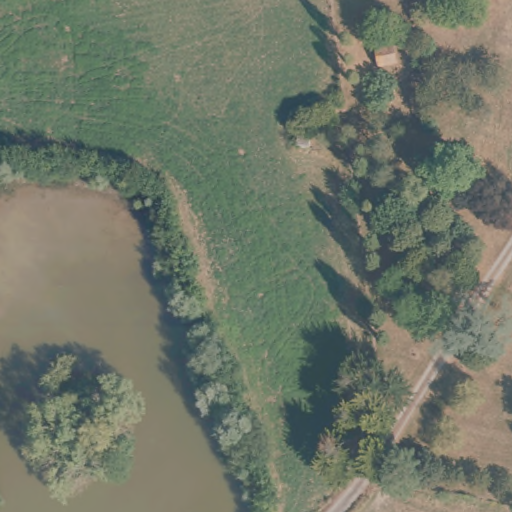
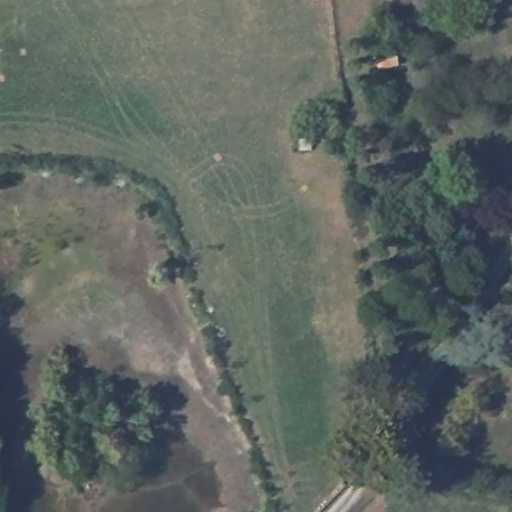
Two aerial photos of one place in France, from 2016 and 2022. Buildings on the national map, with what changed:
unchanged [(397,37),(401,71),(376,78),(374,46),(397,37)]

